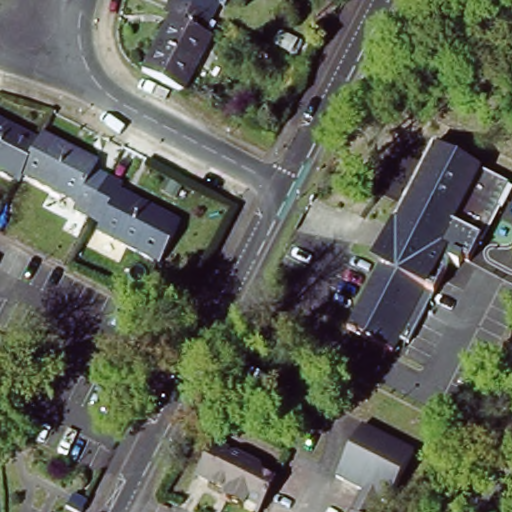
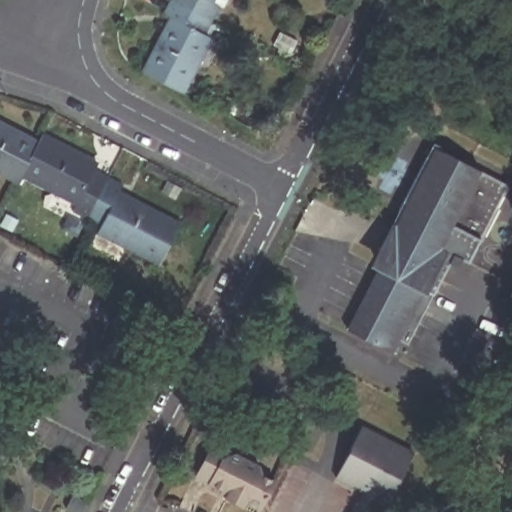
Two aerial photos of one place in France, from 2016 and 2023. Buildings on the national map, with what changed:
unchanged [(208,35),(215,39),(188,92),(148,72),(176,18),(169,14),(176,0),(216,21),(208,35)]
unchanged [(231,12),(222,9),(216,21),(176,0),(237,0),(231,12)]
unchanged [(42,149),(25,182),(22,189),(0,178),(0,127),(42,149)]
unchanged [(90,224),(75,215),(78,210),(25,182),(42,149),(46,142),(98,170),(95,175),(111,185),(90,224)]
unchanged [(392,220),(432,144),(483,170),(443,246),(449,249),(428,293),(423,290),(394,350),(349,328),(375,267),(370,265),(392,220)]
unchanged [(181,230),(161,270),(101,239),(104,231),(90,224),(111,185),(124,192),(121,199),(181,230)]
unchanged [(367,492),(340,478),(366,430),(418,457),(392,505),(380,499),(367,492)]
unchanged [(229,492),(196,475),(213,441),(228,449),(230,455),(234,452),(258,465),(262,475),(274,481),(258,512),(253,512),(226,498),(229,492)]
unchanged [(357,512),(367,492),(380,499),(373,512),(357,512)]

